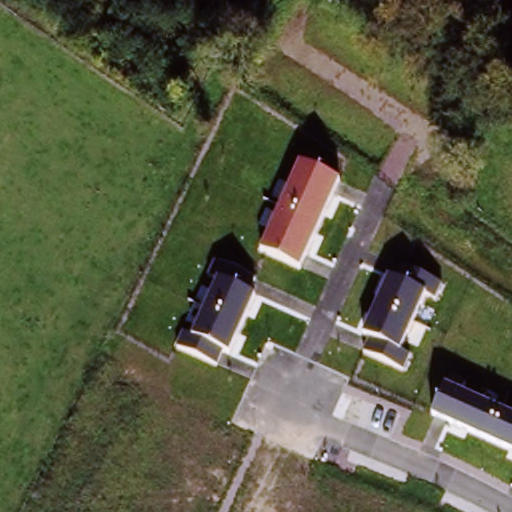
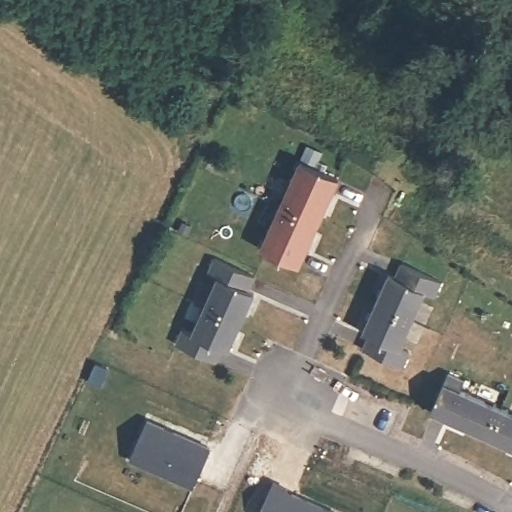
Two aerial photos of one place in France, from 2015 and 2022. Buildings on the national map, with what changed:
unchanged [(260,248),(299,161),(338,178),(301,265),(260,248)]
unchanged [(174,345),(182,326),(193,330),(217,274),(206,270),(212,259),(253,275),(248,287),(256,290),(230,350),(223,347),(216,362),(174,345)]
unchanged [(362,350),(367,337),(362,335),(390,271),(401,275),(407,265),(440,281),(432,296),(425,292),(400,346),(410,353),(403,368),(362,350)]
unchanged [(430,412),(442,381),(512,411),(512,448),(430,412)]
new [(211,449),(192,490),(130,461),(147,422),(211,449)]
new [(288,494),(328,512),(261,512),(275,484),(290,490),(288,494)]

